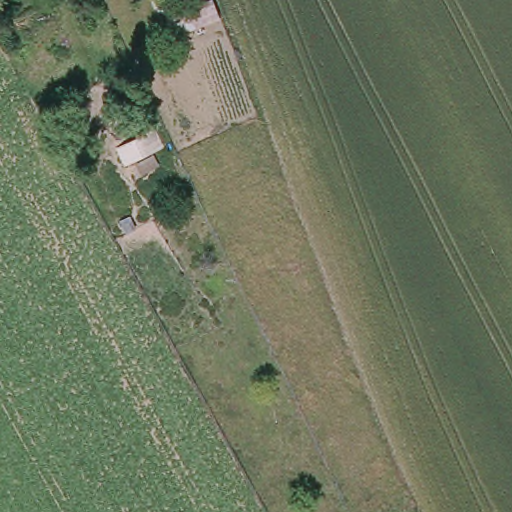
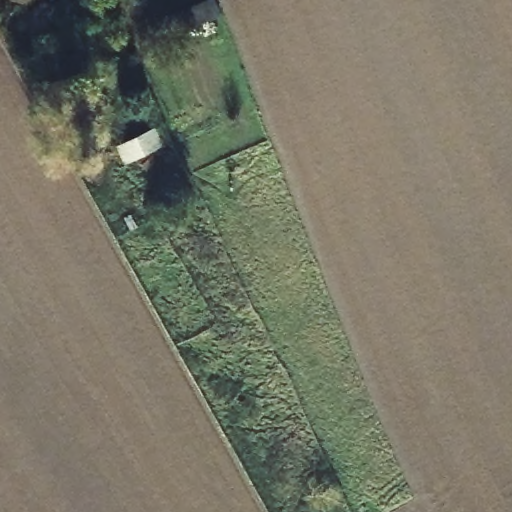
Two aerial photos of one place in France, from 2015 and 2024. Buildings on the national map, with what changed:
unchanged [(185,22),(176,4),(186,0),(232,0),(233,3),(185,22)]

